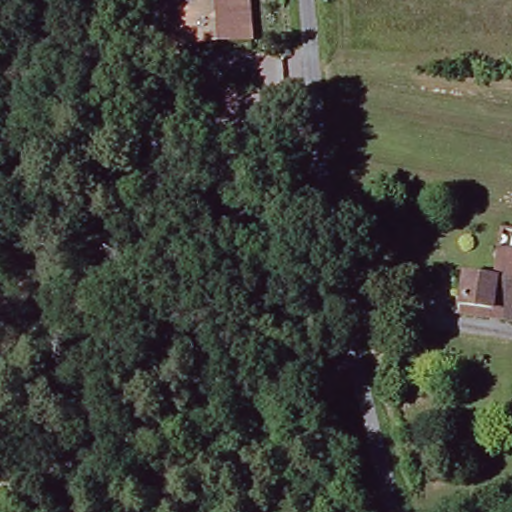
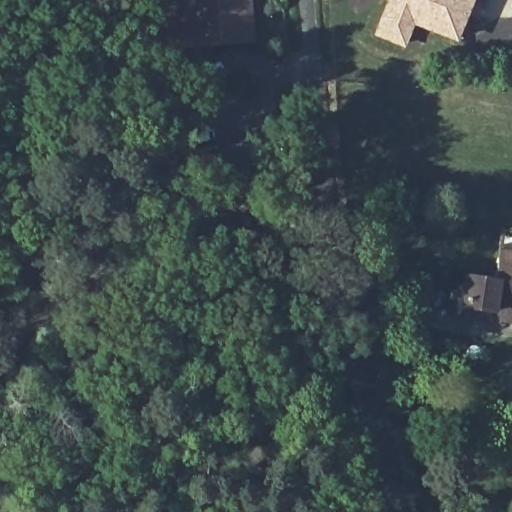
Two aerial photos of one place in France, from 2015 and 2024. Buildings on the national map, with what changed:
unchanged [(200,46),(175,49),(162,51),(159,51),(154,3),(157,2),(169,1),(168,0),(236,0),(240,26),(241,41),(200,46)]
new [(375,33),(388,0),(468,0),(453,37),(409,20),(400,44),(375,33)]
unchanged [(497,280),(497,270),(502,232),(512,234),(512,316),(492,313),(497,280)]
unchanged [(459,310),(464,277),(497,280),(492,313),(459,310)]

